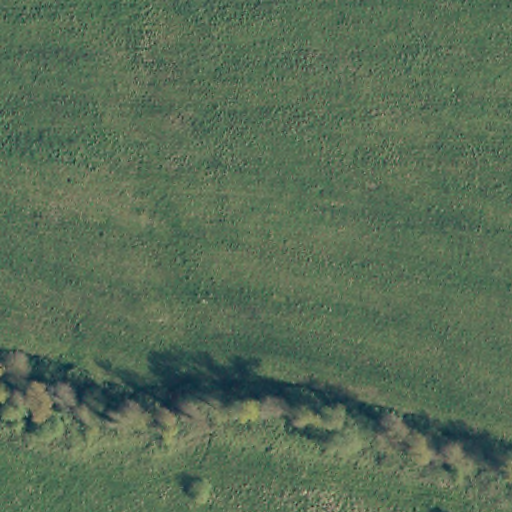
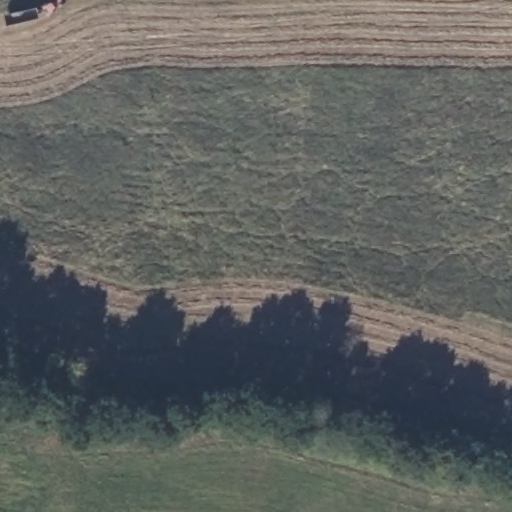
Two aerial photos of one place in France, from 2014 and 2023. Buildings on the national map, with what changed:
[]

